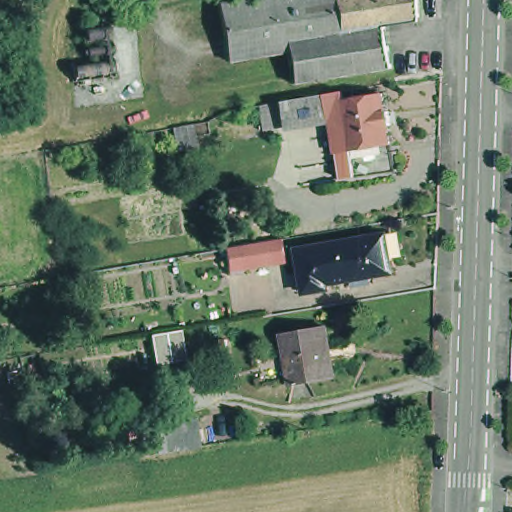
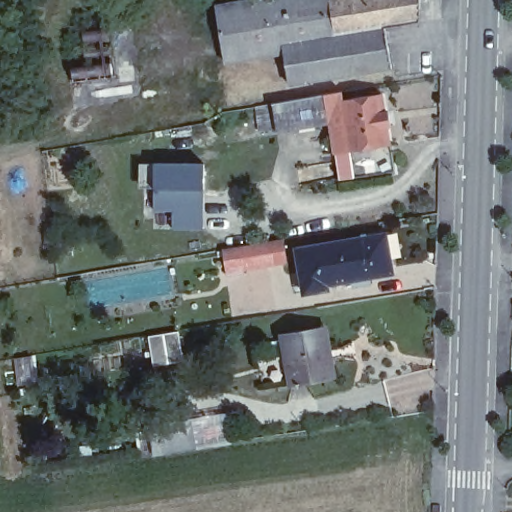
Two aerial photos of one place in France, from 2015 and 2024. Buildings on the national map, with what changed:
unchanged [(284,48),(226,57),(225,52),(218,15),(215,0),(428,0),(430,13),(421,14),(404,17),(334,29),(282,39),(283,42),(284,42),(386,24),(393,63),(290,81),(284,48)]
unchanged [(83,60),(80,44),(78,27),(108,23),(110,39),(114,59),(113,59),(115,76),(115,78),(73,85),(73,84),(69,62),(83,60)]
unchanged [(332,114),(280,124),(261,127),(261,124),(258,101),(276,98),(341,88),(342,95),(381,89),(384,103),(384,105),(390,107),(389,120),(387,121),(389,138),(351,144),(348,130),(341,131),(339,121),(333,122),(332,114)]
unchanged [(334,132),(341,131),(348,130),(351,144),(389,138),(393,158),(394,166),(339,175),(339,168),(334,132)]
new [(172,231),(172,212),(153,212),(151,163),(201,163),(202,231),(172,231)]
unchanged [(352,282),(351,275),(326,279),(324,279),(318,239),(376,230),(386,228),(389,249),(393,269),(364,273),(366,280),(352,282)]
unchanged [(289,261),(229,271),(226,249),(286,239),(289,261)]
unchanged [(324,279),(326,279),(327,285),(302,289),(294,243),(318,239),(324,279)]
unchanged [(321,318),(330,367),(286,375),(278,326),(321,318)]
unchanged [(173,365),(157,367),(151,337),(167,335),(173,365)]
unchanged [(159,447),(155,418),(194,412),(198,440),(159,447)]

